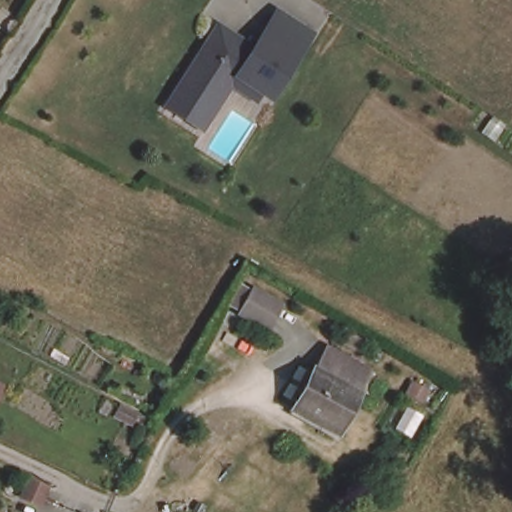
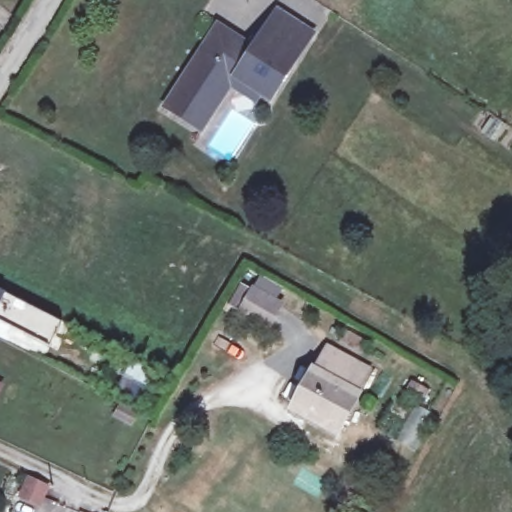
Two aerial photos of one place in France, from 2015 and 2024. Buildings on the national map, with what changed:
unchanged [(276,6),(310,28),(295,50),(262,28),(276,6)]
unchanged [(295,50),(268,92),(261,88),(226,66),(194,115),(166,97),(216,19),(252,42),(262,28),(295,50)]
unchanged [(226,66),(261,88),(254,99),(230,82),(204,122),(194,115),(226,66)]
unchanged [(258,288),(283,302),(270,326),(245,312),(258,288)]
new [(0,291),(61,322),(52,346),(0,320),(0,291)]
unchanged [(318,355),(363,377),(354,395),(309,372),(318,355)]
unchanged [(354,395),(332,437),(317,428),(319,425),(290,410),(309,372),(354,395)]
unchanged [(122,402),(139,411),(132,423),(115,414),(122,402)]
unchanged [(39,485),(47,488),(39,507),(20,498),(29,480),(39,485)]

